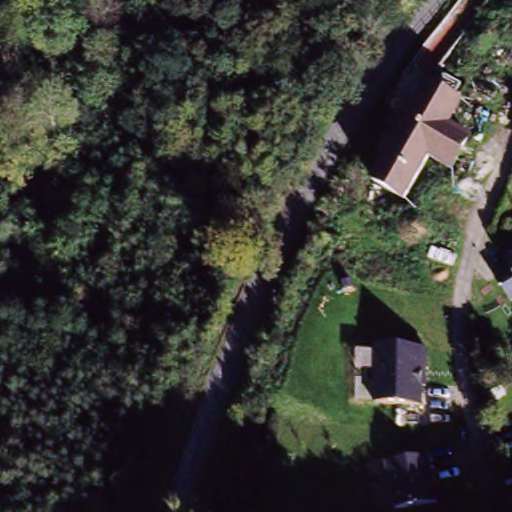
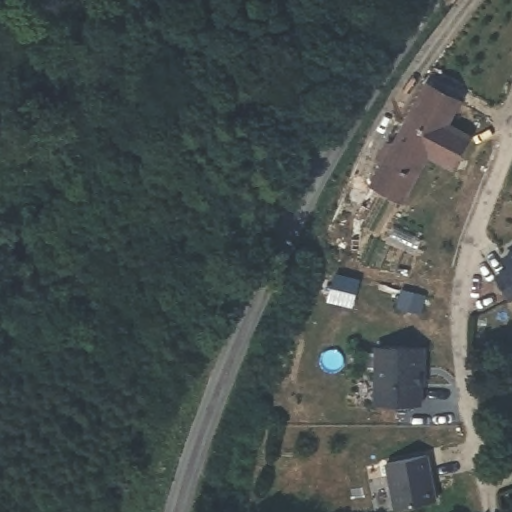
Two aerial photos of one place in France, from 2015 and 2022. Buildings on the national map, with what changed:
unchanged [(458,99),(445,123),(469,136),(453,167),(430,154),(405,201),(373,183),(384,163),(380,156),(420,81),(458,99)]
unchanged [(512,294),(498,273),(510,265),(504,254),(512,249),(512,294)]
unchanged [(423,404),(374,402),(377,370),(359,369),(361,345),(426,349),(423,404)]
unchanged [(437,500),(393,510),(385,464),(428,456),(437,500)]

